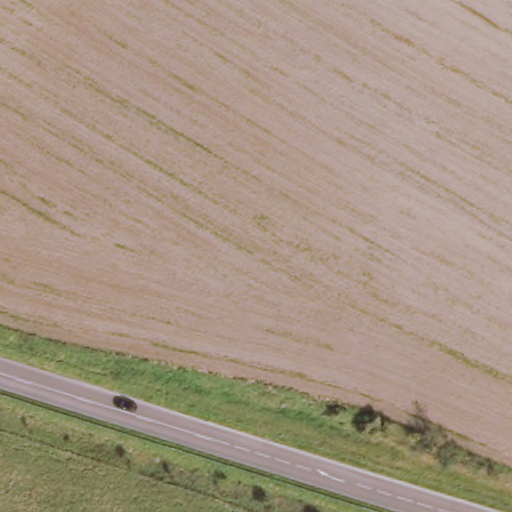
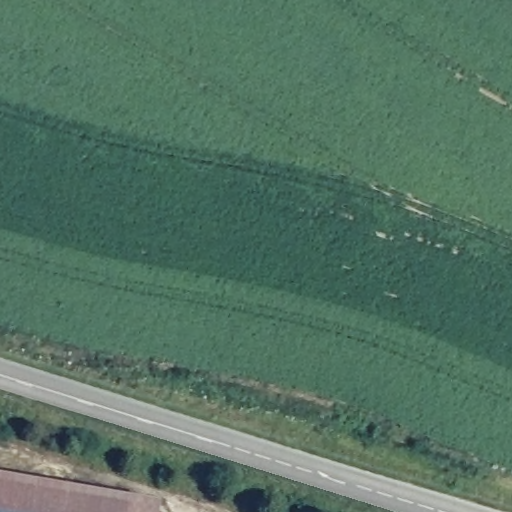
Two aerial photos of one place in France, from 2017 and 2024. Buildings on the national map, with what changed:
new [(160,494),(157,512),(0,512),(0,464),(160,494)]

